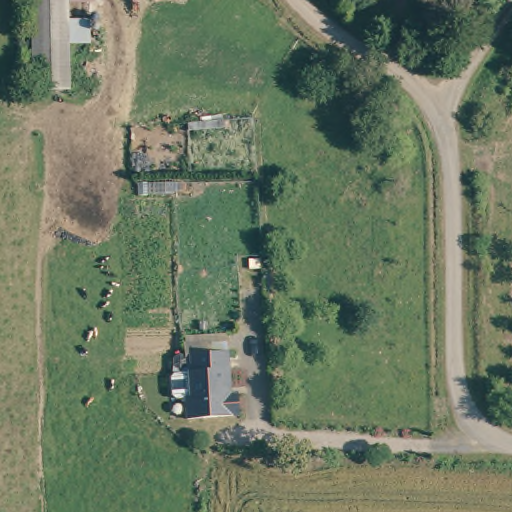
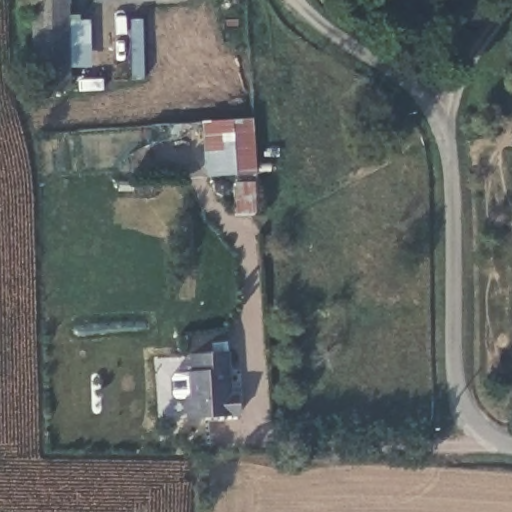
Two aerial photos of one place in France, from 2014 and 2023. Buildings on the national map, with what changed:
unchanged [(69,37),(69,82),(36,82),(36,0),(68,0),(69,21),(94,21),(94,37),(69,37)]
new [(257,174),(205,176),(201,121),(253,118),(257,174)]
unchanged [(230,355),(232,373),(229,373),(230,392),(227,392),(228,397),(241,397),(243,418),(191,422),(189,402),(180,402),(176,398),(175,381),(178,377),(195,375),(194,358),(230,355)]

